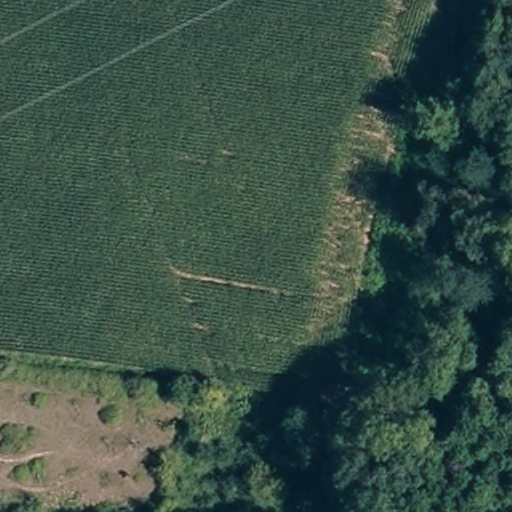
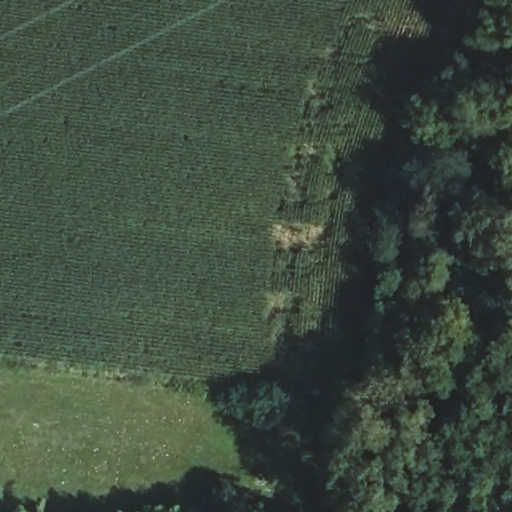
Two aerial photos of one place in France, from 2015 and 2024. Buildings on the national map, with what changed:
[]

